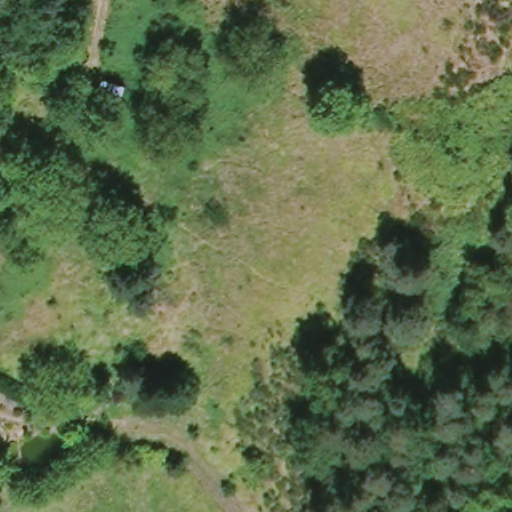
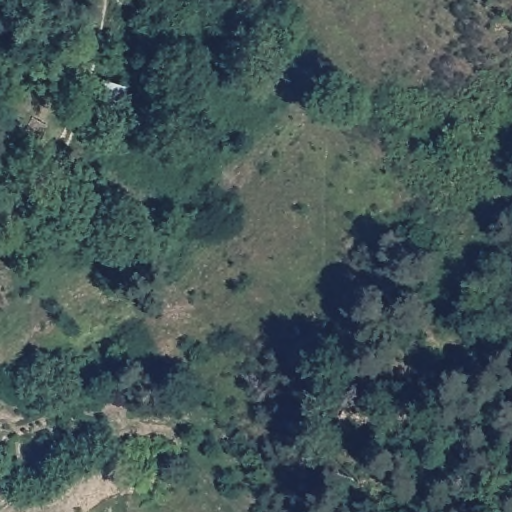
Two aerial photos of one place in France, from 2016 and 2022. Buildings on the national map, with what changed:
unchanged [(51,108),(55,95),(69,99),(66,112),(51,108)]

